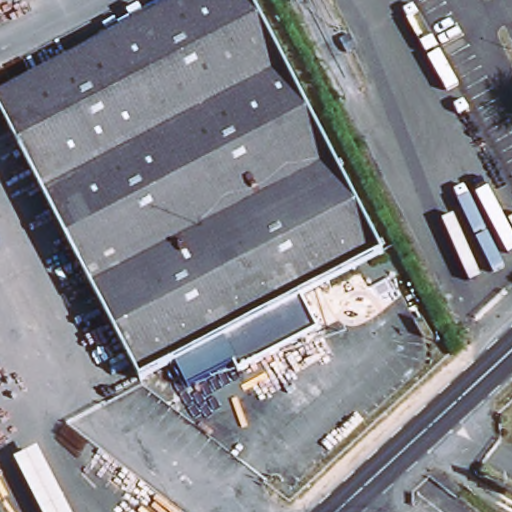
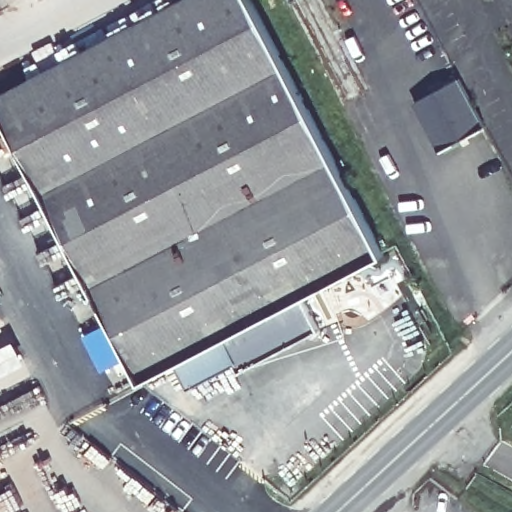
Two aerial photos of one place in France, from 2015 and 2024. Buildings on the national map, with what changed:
unchanged [(175,363),(141,381),(130,361),(0,111),(0,98),(186,0),(250,0),(382,255),(302,297),(318,330),(239,373),(235,366),(189,390),(185,382),(175,363)]
new [(460,76),(485,122),(438,147),(413,101),(460,76)]
new [(0,319),(5,327),(0,330),(0,319)]
new [(27,362),(0,377),(0,349),(16,341),(27,362)]

